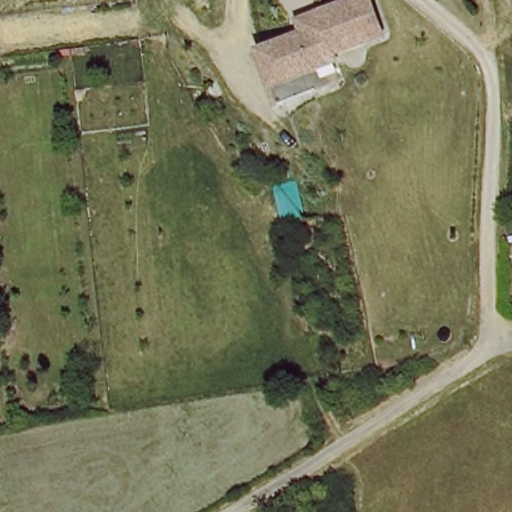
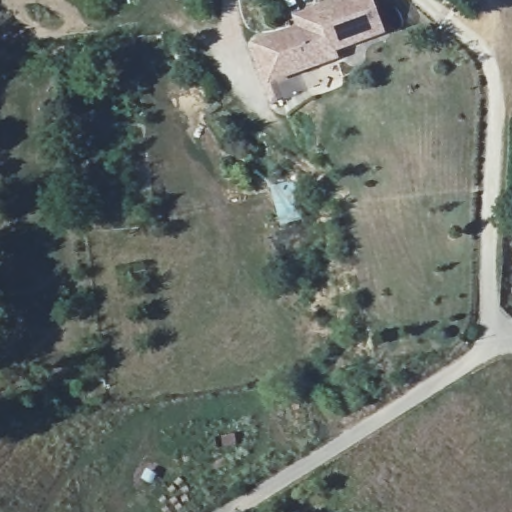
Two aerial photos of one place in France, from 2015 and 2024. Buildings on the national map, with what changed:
unchanged [(323,0),(366,0),(384,46),(335,66),(337,73),(303,86),(287,51),(276,32),(294,26),(289,14),(300,9),(310,5),(311,5),(323,0)]
unchanged [(287,51),(303,86),(271,99),(248,43),(276,32),(287,51)]

